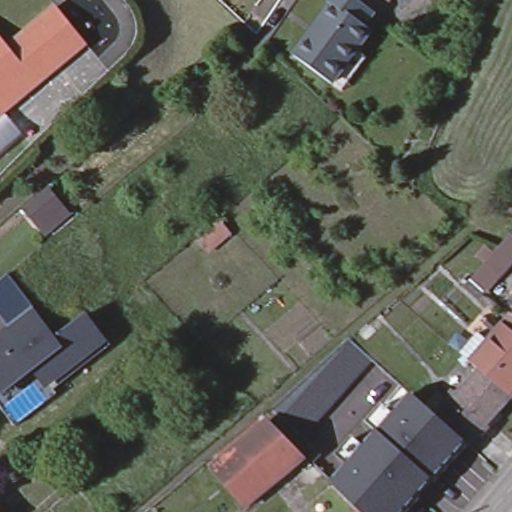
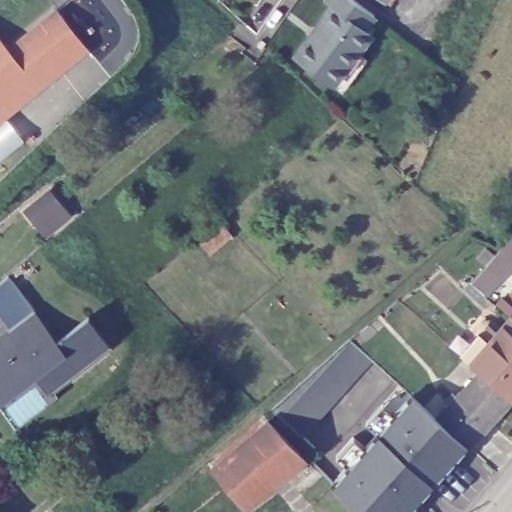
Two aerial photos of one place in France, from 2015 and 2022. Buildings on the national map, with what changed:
unchanged [(325,3),(327,0),(353,0),(374,16),(365,30),(370,35),(332,86),(293,58),(330,7),(325,3)]
unchanged [(380,0),(386,0),(384,3),(380,0)]
unchanged [(55,5),(87,45),(7,117),(23,137),(0,156),(0,35),(7,43),(55,5)]
unchanged [(27,215),(47,198),(57,211),(37,228),(27,215)]
unchanged [(231,236),(210,256),(195,243),(217,224),(231,236)]
unchanged [(12,336),(8,331),(7,330),(7,329),(0,319),(0,282),(8,276),(34,310),(35,311),(30,315),(52,344),(84,319),(87,316),(95,326),(111,347),(54,391),(50,385),(40,372),(37,368),(0,396),(0,338),(3,342),(12,336)]
unchanged [(477,364),(512,323),(512,398),(507,404),(472,443),(443,417),(478,378),(485,371),(477,364)]
unchanged [(382,431),(371,421),(387,403),(398,412),(416,393),(432,408),(433,408),(433,407),(443,417),(472,443),(424,497),(411,512),(365,512),(363,510),(337,483),(351,467),(340,457),(357,438),(367,448),(377,437),(382,431)]
unchanged [(269,420),(305,457),(243,508),(214,472),(210,468),(269,420)]
unchanged [(363,510),(365,512),(361,512),(363,510)]

